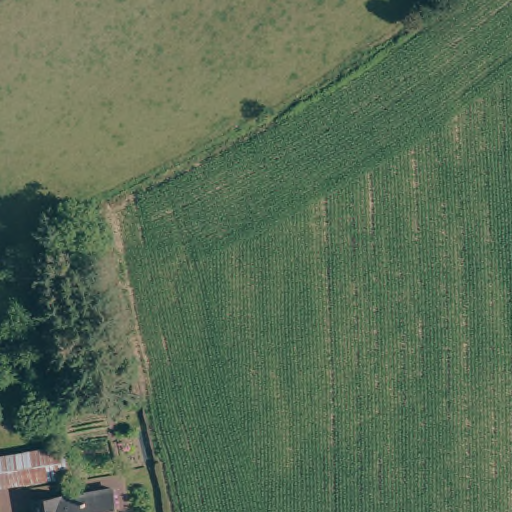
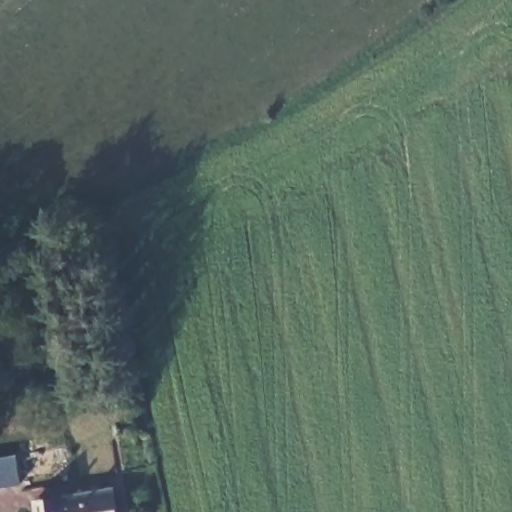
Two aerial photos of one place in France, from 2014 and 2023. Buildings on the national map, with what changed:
unchanged [(0,484),(0,457),(63,445),(67,471),(0,484)]
unchanged [(116,512),(41,512),(39,497),(112,486),(116,512)]

